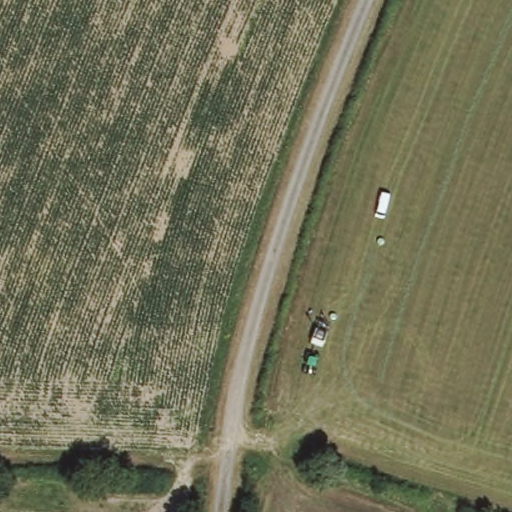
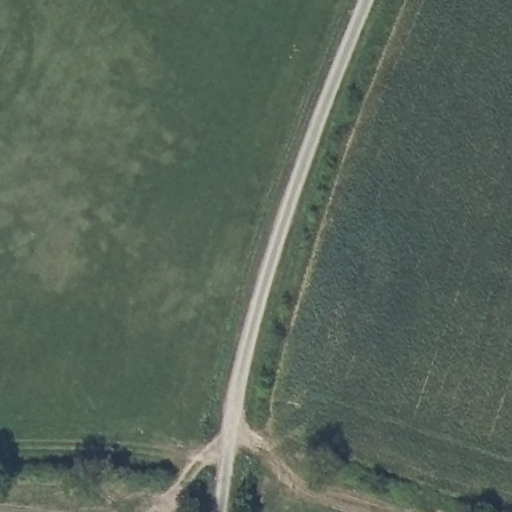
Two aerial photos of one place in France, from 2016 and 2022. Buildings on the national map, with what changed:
[]

